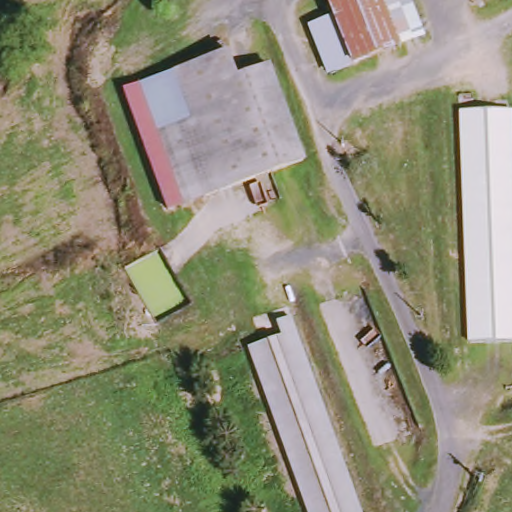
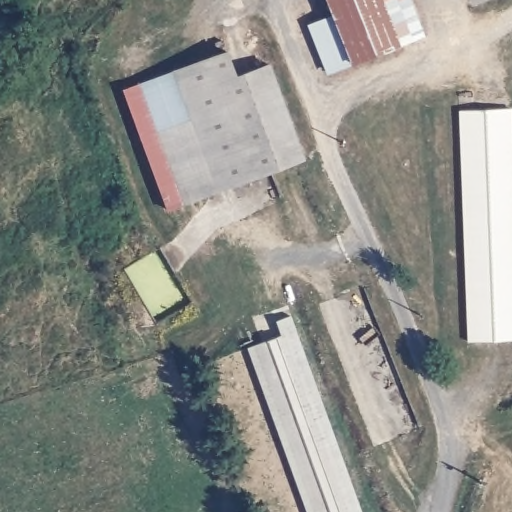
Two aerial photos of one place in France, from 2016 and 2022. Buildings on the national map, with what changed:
unchanged [(326,0),(407,0),(424,41),(356,70),(337,26),(326,0)]
unchanged [(475,2),(474,0),(481,0),(475,2)]
unchanged [(356,70),(333,81),(316,36),(337,26),(356,70)]
unchanged [(166,132),(201,119),(186,69),(236,52),(245,78),(273,69),(307,166),(189,205),(166,132)]
unchanged [(133,90),(134,87),(186,69),(201,119),(166,132),(189,205),(171,211),(133,90)]
unchanged [(484,343),(469,114),(512,112),(512,341),(484,343)]
unchanged [(282,323),(297,318),(369,512),(310,512),(252,348),(286,335),(282,323)]

